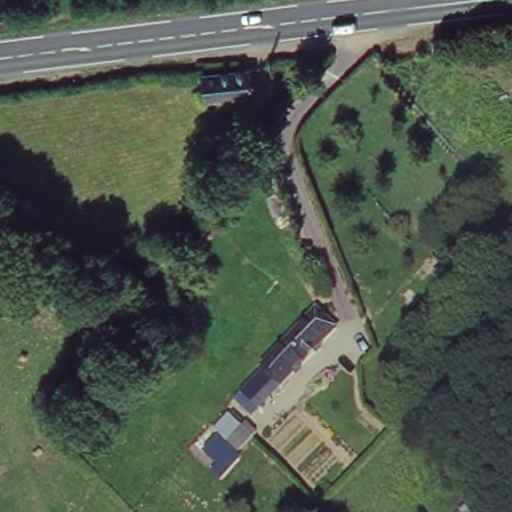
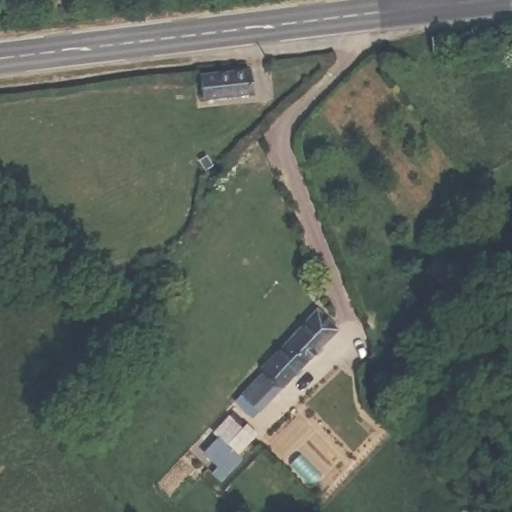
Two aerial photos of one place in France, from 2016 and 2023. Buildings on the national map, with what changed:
unchanged [(245,66),(248,87),(200,92),(198,72),(245,66)]
unchanged [(270,363),(265,357),(316,303),(338,324),(253,411),(238,396),(270,363)]
unchanged [(237,455),(242,460),(222,482),(211,472),(216,465),(204,454),(221,438),(214,430),(230,414),(242,426),(246,423),(257,434),(237,455)]

